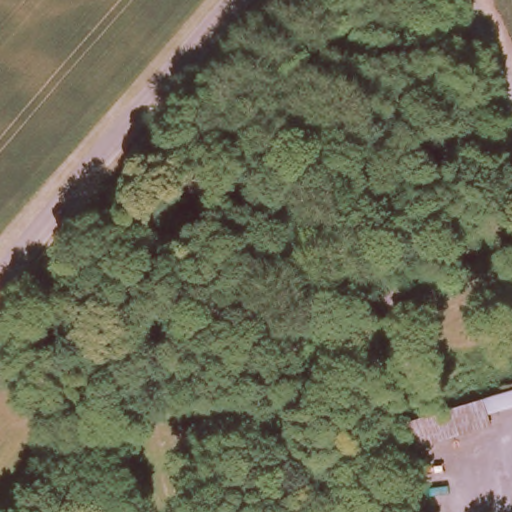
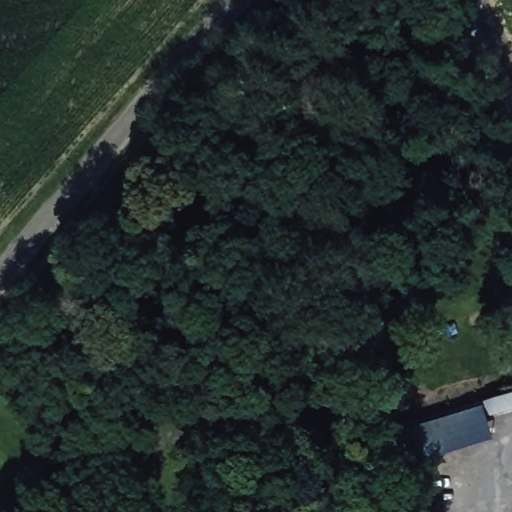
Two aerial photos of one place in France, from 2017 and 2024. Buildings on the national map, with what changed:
unchanged [(512,393),(512,410),(485,417),(487,431),(407,452),(403,419),(482,400),(512,393)]

